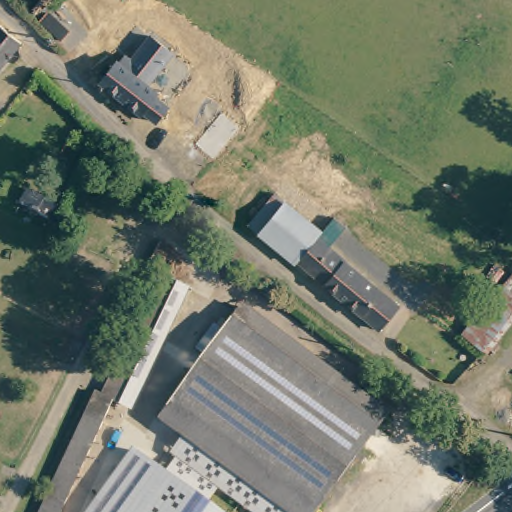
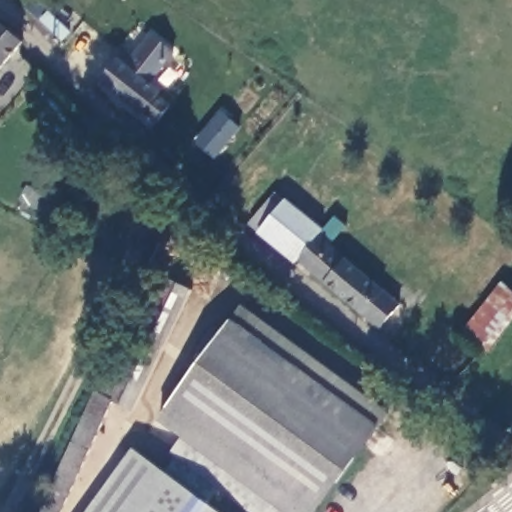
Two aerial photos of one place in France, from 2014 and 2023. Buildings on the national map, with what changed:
unchanged [(10,50),(0,63),(0,29),(16,42),(10,50)]
unchanged [(127,65),(152,35),(176,54),(151,85),(127,65)]
unchanged [(125,63),(163,94),(159,99),(172,111),(161,122),(146,109),(143,114),(109,84),(125,63)]
new [(194,141),(220,110),(241,129),(213,159),(194,141)]
unchanged [(296,260),(268,235),(255,224),(279,198),(291,208),(321,233),(296,260)]
unchanged [(322,234),(402,307),(383,325),(307,254),(322,234)]
unchanged [(512,295),(512,315),(485,349),(461,331),(497,284),(512,295)]
unchanged [(120,422),(111,418),(65,512),(40,512),(90,409),(94,411),(153,292),(174,300),(120,422)]
unchanged [(178,399),(238,320),(250,308),(391,413),(379,427),(319,507),(178,399)]
unchanged [(315,512),(291,512),(166,416),(178,399),(319,507),(315,512)]
unchanged [(291,512),(249,512),(218,489),(207,506),(215,512),(89,512),(135,451),(166,474),(177,460),(166,452),(186,431),(291,512)]

